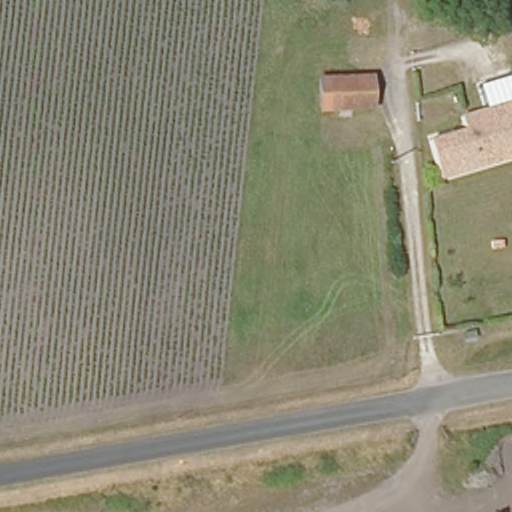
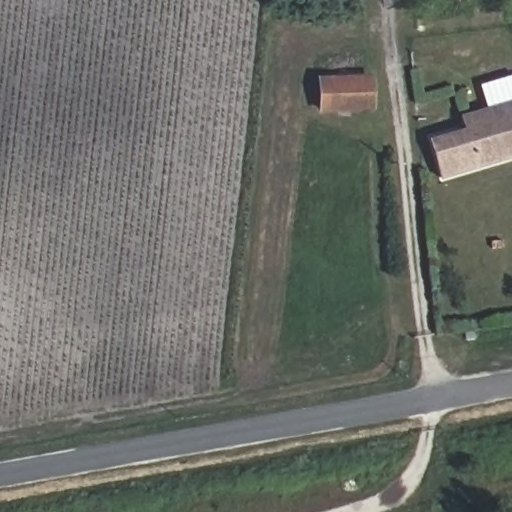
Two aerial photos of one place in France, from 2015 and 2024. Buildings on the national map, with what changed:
unchanged [(369,104),(324,109),(322,82),(367,78),(369,104)]
unchanged [(431,144),(436,140),(437,133),(470,123),(467,114),(512,101),(512,154),(441,175),(431,144)]

